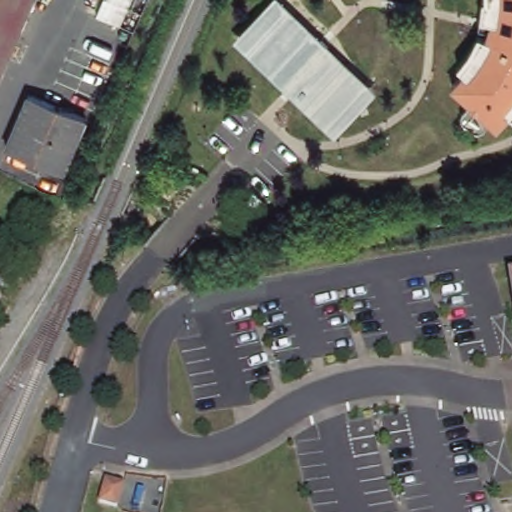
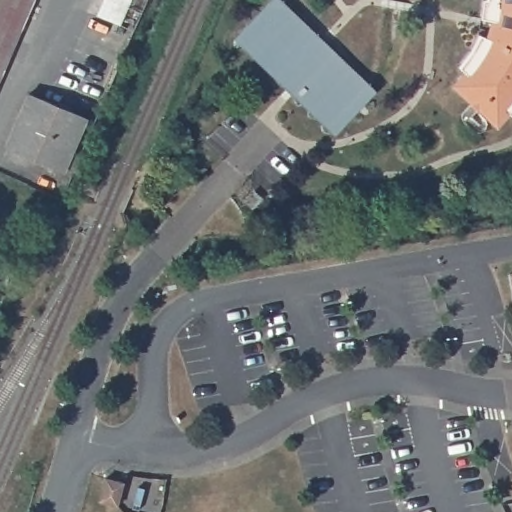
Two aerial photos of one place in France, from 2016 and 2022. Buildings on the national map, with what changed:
unchanged [(0,77),(0,0),(34,0),(0,77)]
unchanged [(231,39),(269,0),(281,0),(376,92),(335,136),(231,39)]
unchanged [(508,115),(498,127),(450,85),(462,70),(457,64),(468,49),(478,30),(485,35),(489,21),(478,20),(481,0),(512,0),(512,118),(508,115)]
unchanged [(81,115),(67,152),(76,156),(68,175),(3,150),(25,94),(81,115)]
unchanged [(7,287),(0,285),(0,263),(15,270),(7,287)]
unchanged [(511,278),(512,278),(512,284),(511,278)]
unchanged [(124,485),(117,507),(99,502),(105,480),(124,485)]

